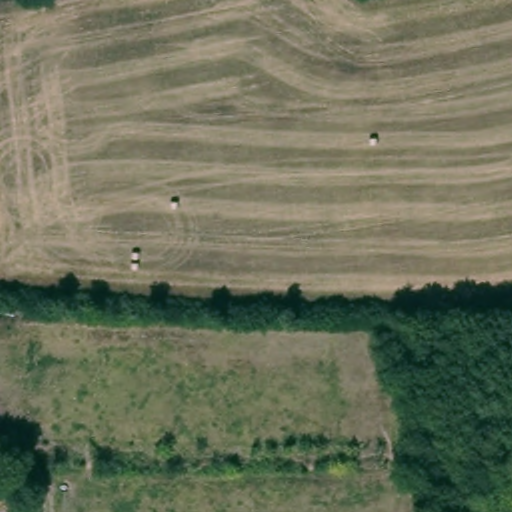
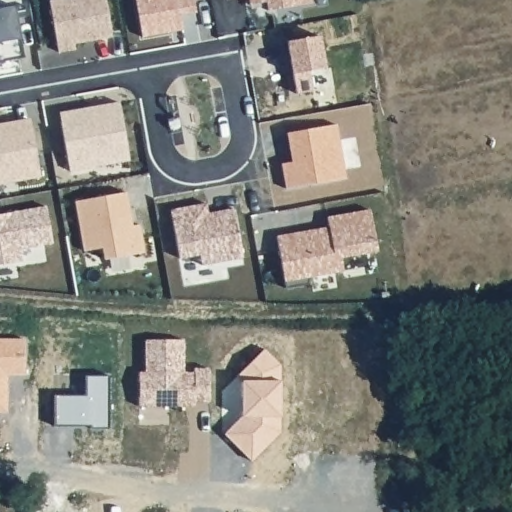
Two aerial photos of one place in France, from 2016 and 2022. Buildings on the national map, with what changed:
new [(75,43),(76,48),(60,52),(50,0),(106,0),(112,36),(75,43)]
new [(181,15),(183,30),(143,37),(137,0),(194,0),(196,12),(181,15)]
new [(250,0),(312,0),(313,3),(268,10),(267,6),(252,9),(251,4),(250,0)]
new [(24,4),(25,17),(17,18),(25,58),(6,62),(5,58),(0,59),(0,8),(15,5),(24,4)]
new [(321,36),(328,68),(313,71),(316,91),(299,93),(290,41),(321,36)]
new [(94,166),(71,170),(62,122),(61,112),(82,108),(120,102),(130,155),(130,160),(94,166)]
new [(8,122),(30,118),(32,128),(41,176),(17,180),(0,184),(0,123),(8,122)]
new [(127,192),(133,225),(140,224),(146,252),(105,258),(104,246),(85,249),(76,200),(127,192)]
new [(207,203),(210,218),(219,216),(218,211),(235,208),(243,257),(202,265),(201,254),(180,258),(171,209),(207,203)]
new [(47,205),(54,242),(20,247),(22,259),(0,263),(0,214),(47,205)]
new [(323,228),(330,226),(328,217),(370,209),(377,251),(341,258),(343,271),(309,277),(310,285),(287,289),(277,236),(300,232),(323,228)]
new [(0,410),(0,339),(25,338),(24,373),(7,373),(6,400),(6,410),(0,410)]
new [(145,372),(146,339),(185,339),(184,371),(195,371),(195,368),(210,368),(210,402),(190,402),(190,407),(140,407),(139,371),(145,372)]
new [(252,462),(225,435),(243,417),(243,381),(237,375),(265,349),(281,364),(280,424),(273,439),(252,462)]
new [(54,394),(85,394),(85,374),(110,375),(110,429),(89,429),(89,426),(53,426),(54,394)]

